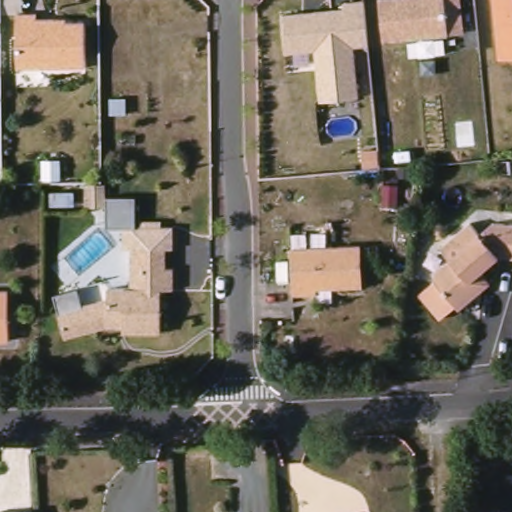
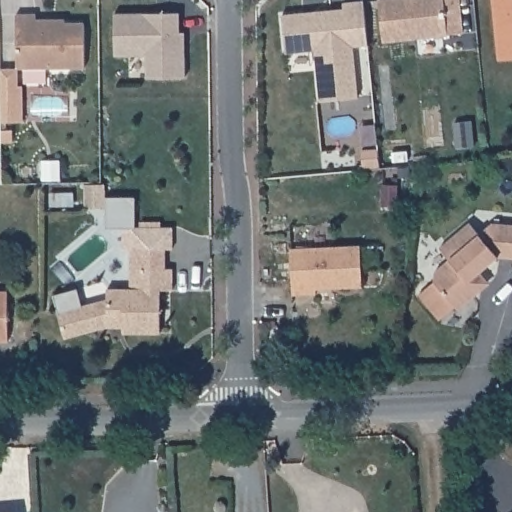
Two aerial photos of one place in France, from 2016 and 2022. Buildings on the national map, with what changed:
unchanged [(313,50),(285,53),(282,15),(342,8),(343,1),(357,0),(362,0),(368,44),(354,45),(359,96),(320,101),(313,50)]
unchanged [(378,0),(459,0),(462,33),(382,43),(378,0)]
unchanged [(506,57),(500,0),(512,0),(512,56),(506,57)]
unchanged [(93,64),(24,64),(24,10),(44,9),(44,15),(61,15),(73,15),(73,18),(92,18),(93,64)]
new [(186,31),(191,31),(191,57),(192,77),(153,77),(121,55),(121,13),(185,12),(186,31)]
unchanged [(84,194),(84,180),(104,179),(104,194),(84,194)]
unchanged [(500,253),(482,268),(486,272),(482,287),(459,306),(436,277),(437,267),(452,255),(442,243),(472,219),(481,230),(494,219),(512,221),(512,255),(500,253)]
unchanged [(361,244),(363,286),(317,287),(317,292),(294,293),(292,247),(361,244)]
unchanged [(68,339),(61,314),(110,301),(110,290),(134,290),(134,270),(134,249),(169,250),(169,271),(175,271),(175,292),(163,292),(163,335),(126,335),(126,329),(108,329),(68,339)]
unchanged [(0,343),(0,293),(10,292),(11,343),(0,343)]
unchanged [(24,512),(16,512),(24,511),(24,512)]

